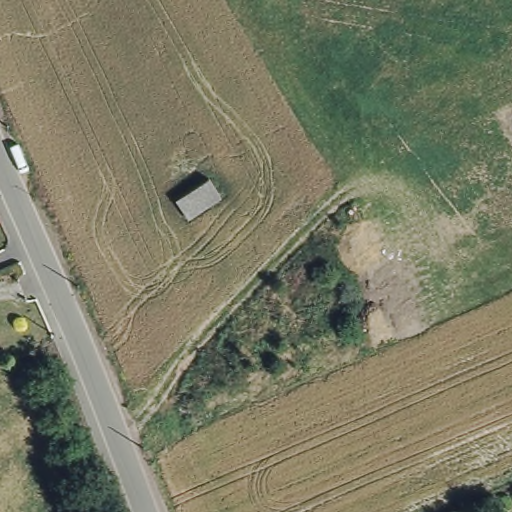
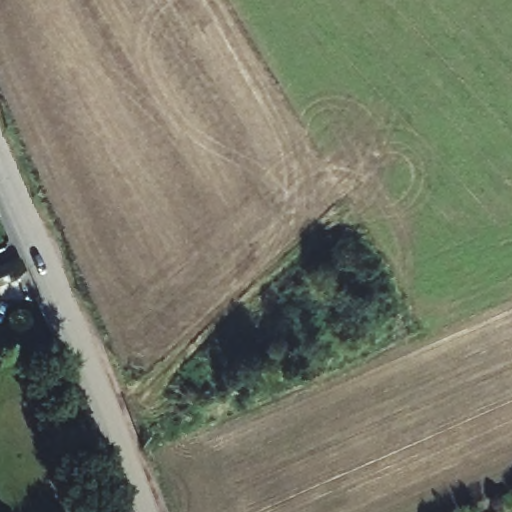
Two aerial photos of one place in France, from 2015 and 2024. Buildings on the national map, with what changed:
demolished [(187,222),(175,206),(209,182),(220,199),(187,222)]

